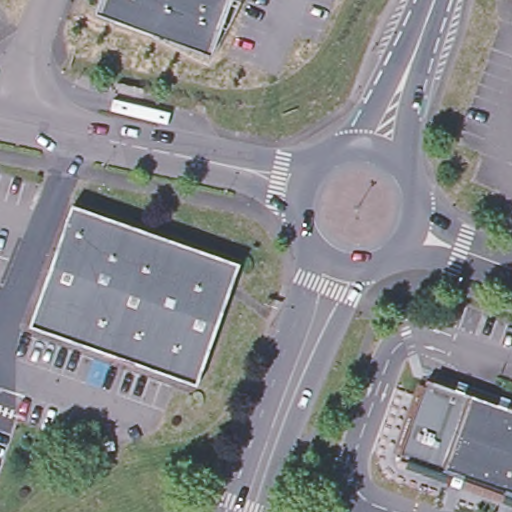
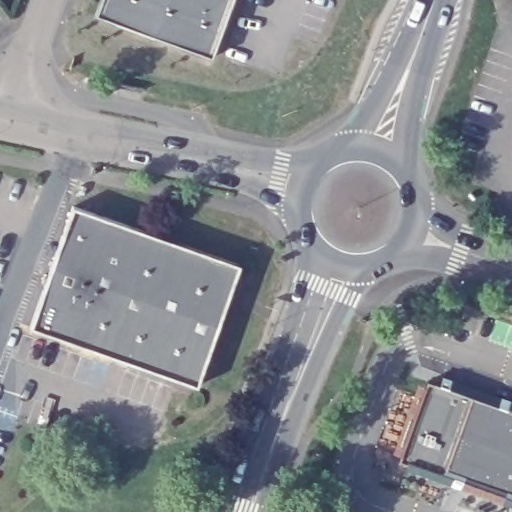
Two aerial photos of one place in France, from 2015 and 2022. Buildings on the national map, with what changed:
unchanged [(104,0),(235,0),(213,59),(97,17),(104,0)]
unchanged [(75,208),(241,267),(198,388),(32,329),(75,208)]
unchanged [(402,465),(432,382),(512,411),(512,503),(402,465)]

